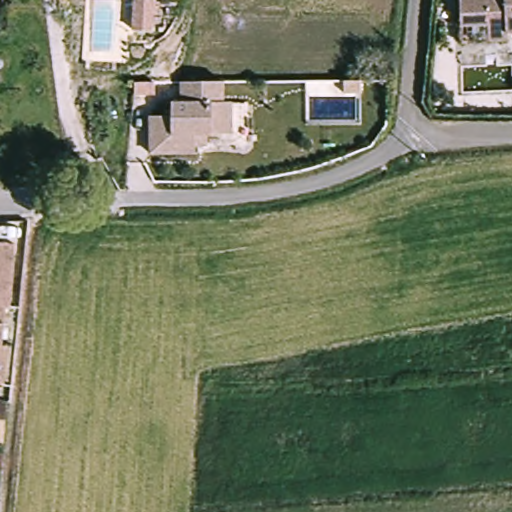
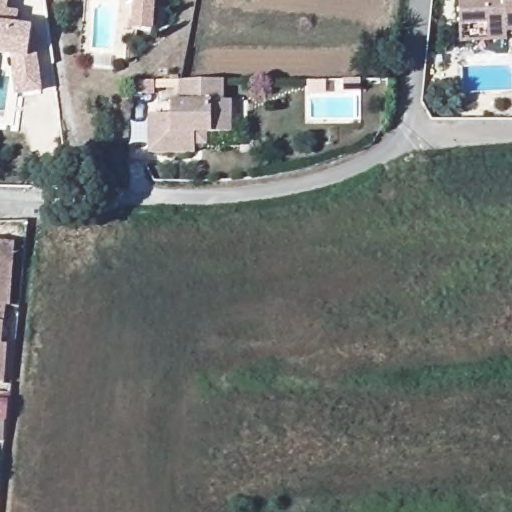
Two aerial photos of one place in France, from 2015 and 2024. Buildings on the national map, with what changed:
new [(18,77),(14,61),(0,59),(0,0),(10,0),(9,14),(20,15),(18,31),(36,32),(36,33),(39,53),(41,74),(44,94),(21,97),(18,77)]
unchanged [(137,32),(130,32),(131,0),(151,0),(149,32),(137,32)]
unchanged [(458,0),(512,0),(512,8),(458,9),(458,0)]
unchanged [(485,32),(484,22),(457,22),(458,9),(512,8),(512,33),(503,33),(503,40),(484,40),(485,32)]
unchanged [(228,96),(236,96),(237,127),(213,129),(213,136),(200,137),(201,149),(152,151),(151,122),(166,121),(164,100),(185,99),(184,79),(228,76),(228,96)]
unchanged [(11,240),(9,303),(5,303),(0,303),(0,239),(11,240)]
unchanged [(5,303),(4,342),(8,342),(6,382),(0,382),(0,303),(5,303)]
unchanged [(5,403),(1,442),(0,442),(0,403),(5,403)]

